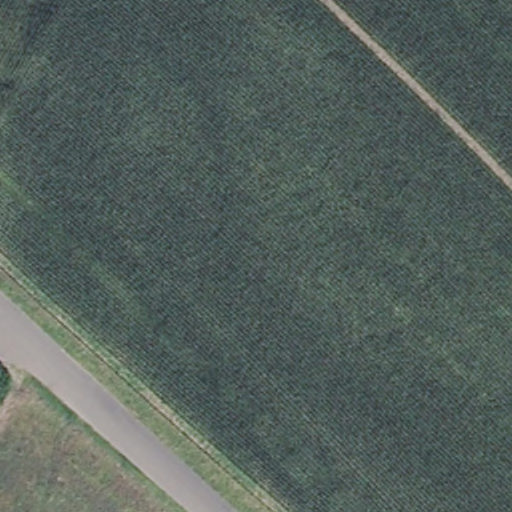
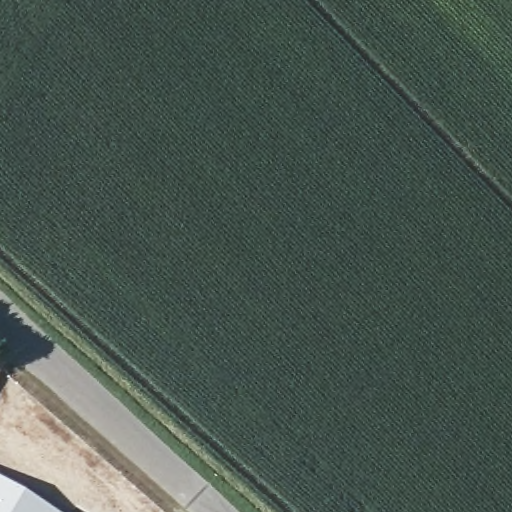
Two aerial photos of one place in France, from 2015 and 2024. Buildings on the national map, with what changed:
new [(56,512),(0,512),(0,479),(56,512)]

